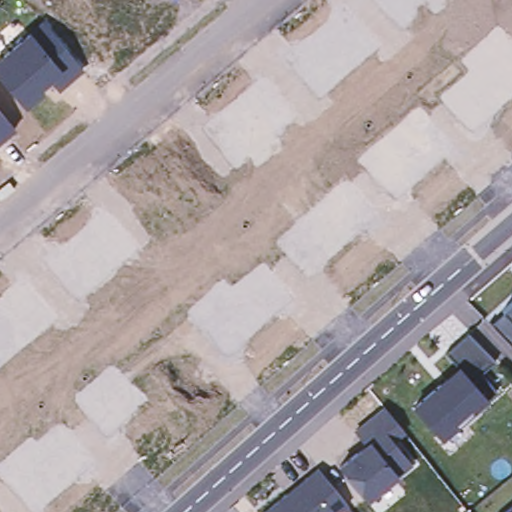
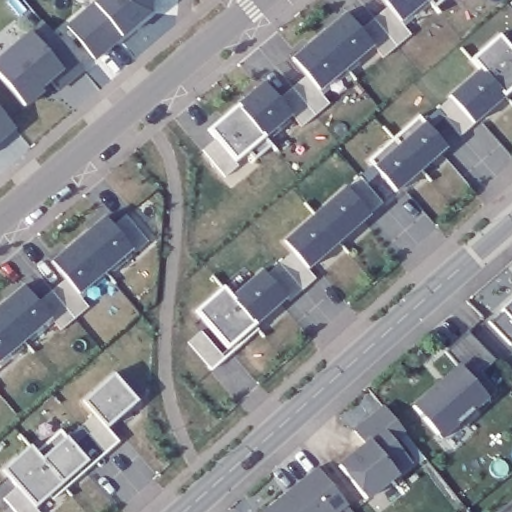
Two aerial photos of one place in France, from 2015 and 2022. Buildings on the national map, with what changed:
unchanged [(149,0),(148,13),(94,59),(66,27),(98,0),(149,0)]
new [(217,139),(209,130),(237,106),(262,84),(275,101),(305,76),(290,58),(345,12),(361,29),(387,6),(382,0),(428,0),(430,1),(401,25),(412,35),(382,58),(372,46),(318,91),(327,103),(301,126),(292,114),(264,136),(272,145),(253,160),(247,152),(237,161),(239,165),(225,178),(202,151),(217,139)]
unchanged [(60,91),(52,84),(24,108),(0,81),(0,55),(47,18),(88,66),(60,91)]
new [(195,312),(223,287),(232,296),(261,270),(267,277),(294,254),(284,241),(345,189),(360,177),(372,166),(369,162),(419,117),(423,123),(450,98),(482,71),(472,59),(499,36),(512,51),(512,89),(503,97),(473,125),(461,135),(446,117),(432,131),(446,147),(395,191),(381,175),(369,187),(382,201),(369,215),(307,268),(315,280),(290,301),(287,297),(255,324),(227,347),(195,312)]
unchanged [(0,143),(0,107),(18,129),(0,143)]
unchanged [(510,347),(487,323),(512,301),(512,345),(510,347)]
new [(188,344),(202,332),(225,357),(210,370),(188,344)]
unchanged [(455,371),(442,355),(468,336),(491,362),(479,373),(495,393),(487,401),(446,439),(415,406),(455,371)]
new [(4,499),(17,486),(3,469),(30,444),(37,451),(61,430),(67,438),(94,416),(82,401),(115,374),(137,400),(105,427),(117,441),(53,498),(49,493),(35,505),(40,512),(16,512),(4,499)]
unchanged [(362,447),(351,435),(382,409),(400,433),(391,439),(410,463),(393,475),(365,498),(338,466),(362,447)]
unchanged [(317,473),(345,507),(338,512),(267,512),(317,473)]
unchanged [(512,505),(512,512),(504,512),(512,505)]

